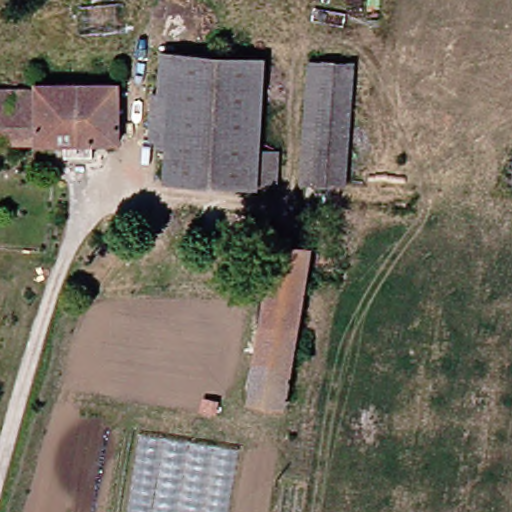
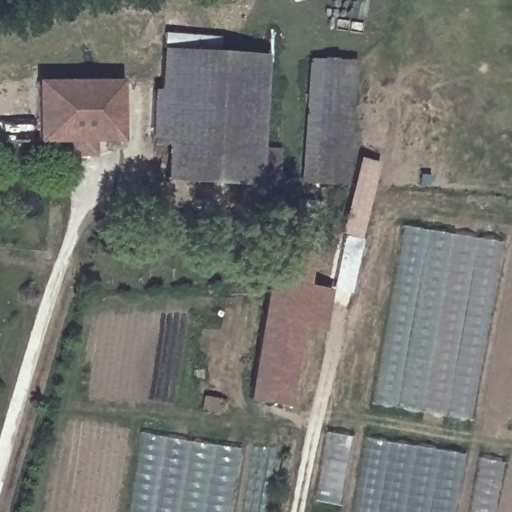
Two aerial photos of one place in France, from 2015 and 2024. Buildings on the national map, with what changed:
unchanged [(284,179),(259,180),(175,180),(174,154),(155,152),(154,94),(164,94),(163,64),(257,65),(259,144),(283,144),(284,179)]
unchanged [(354,177),(309,177),(307,67),(352,67),(354,177)]
unchanged [(120,81),(124,143),(97,145),(96,157),(62,158),(62,147),(10,150),(8,87),(120,81)]
unchanged [(0,150),(0,88),(8,87),(10,150),(0,150)]
new [(364,239),(340,233),(354,177),(359,157),(382,163),(364,239)]
new [(469,421),(370,405),(404,230),(500,245),(469,421)]
unchanged [(293,403),(254,396),(277,244),(316,251),(293,403)]
new [(322,332),(304,328),(310,287),(329,291),(322,332)]
new [(314,502),(325,432),(350,437),(337,507),(314,502)]
new [(141,434),(235,448),(225,512),(129,512),(141,434)]
new [(363,440),(468,454),(458,512),(350,512),(363,440)]
new [(482,458),(507,462),(498,512),(472,512),(482,458)]

